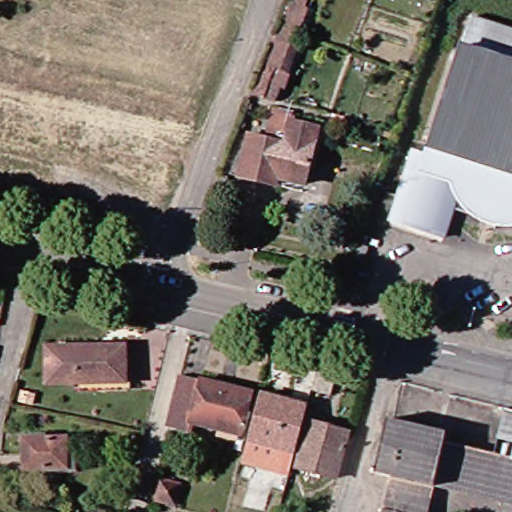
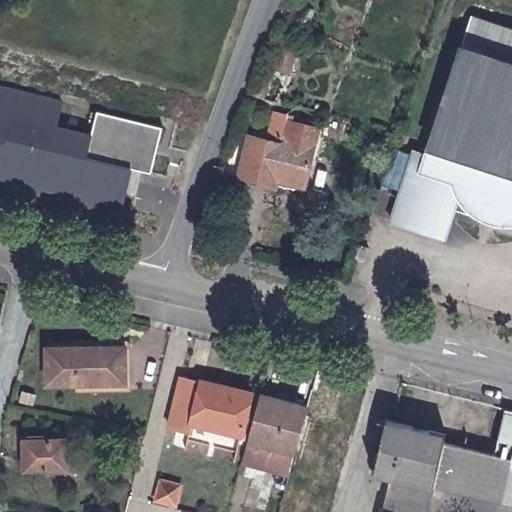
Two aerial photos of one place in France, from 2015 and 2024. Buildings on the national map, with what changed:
unchanged [(299,2),(301,4),(301,0),(310,0),(310,7),(316,10),(291,73),(295,72),(290,90),(284,89),(283,100),(258,87),(299,2)]
unchanged [(318,2),(315,3),(316,0),(319,0),(318,2)]
unchanged [(453,240),(399,222),(421,151),(435,155),(480,17),(512,28),(512,225),(508,227),(487,220),(487,219),(462,211),(453,240)]
demolished [(82,155),(58,147),(45,194),(0,182),(0,78),(96,103),(82,155)]
new [(63,101),(57,124),(91,133),(97,111),(163,127),(153,171),(144,168),(138,192),(128,191),(121,218),(0,187),(0,86),(63,101)]
demolished [(82,155),(96,103),(165,122),(152,174),(82,155)]
unchanged [(317,182),(286,177),(284,184),(249,177),(257,134),(298,142),(299,138),(299,133),(301,120),(328,126),(326,140),(326,144),(317,182)]
unchanged [(370,243),(383,247),(378,260),(366,256),(370,243)]
unchanged [(132,344),(131,389),(85,389),(85,381),(52,380),(53,342),(132,344)]
unchanged [(341,373),(335,395),(313,390),(318,367),(341,373)]
unchanged [(184,377),(253,393),(244,433),(194,422),(193,432),(172,427),(184,377)]
unchanged [(308,408),(298,454),(249,444),(261,395),(308,408)]
unchanged [(431,512),(384,512),(393,472),(371,467),(375,452),(380,453),(388,416),(450,431),(448,438),(438,483),(431,512)]
unchanged [(351,431),(340,478),(300,467),(312,420),(351,431)]
unchanged [(438,483),(448,438),(512,453),(512,474),(505,500),(438,483)]
unchanged [(79,442),(77,472),(31,471),(32,441),(79,442)]
unchanged [(512,474),(512,502),(505,500),(512,474)]
unchanged [(160,501),(167,476),(187,482),(182,506),(160,501)]

